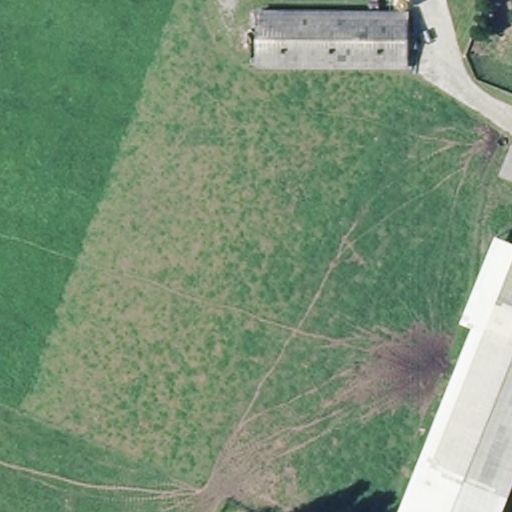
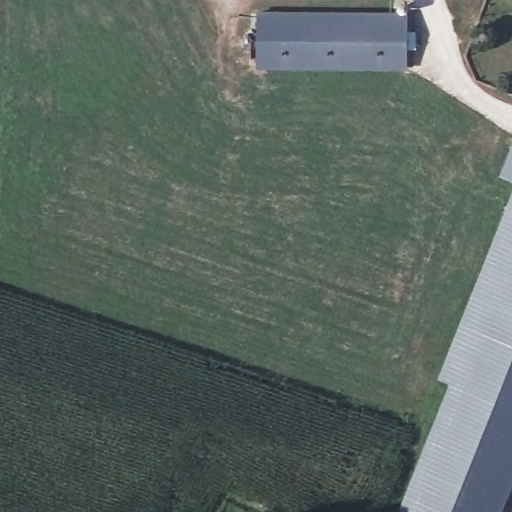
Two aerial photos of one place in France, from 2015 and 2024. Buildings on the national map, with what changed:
unchanged [(404,13),(404,34),(414,35),(415,54),(404,55),(404,69),(255,67),(256,11),(404,13)]
unchanged [(507,177),(512,162),(512,179),(507,177)]
unchanged [(501,299),(512,270),(512,304),(501,299)]
unchanged [(507,512),(422,512),(501,299),(512,304),(512,499),(507,512)]

